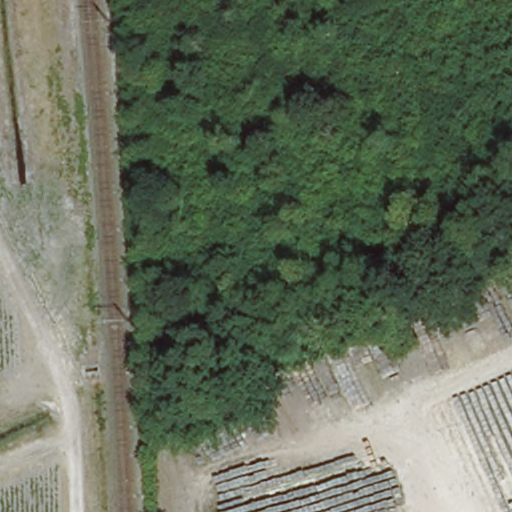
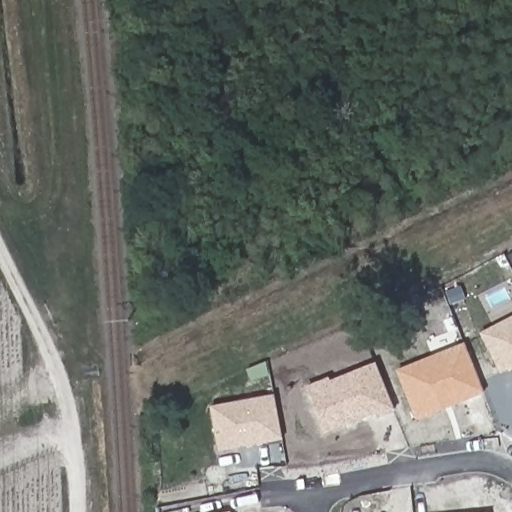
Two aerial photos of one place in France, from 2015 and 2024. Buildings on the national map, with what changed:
new [(501,375),(482,338),(486,336),(483,331),(512,317),(512,373),(510,370),(501,375)]
new [(463,344),(468,348),(483,392),(417,419),(396,371),(463,344)]
new [(395,412),(360,420),(325,434),(307,389),(374,361),(395,412)]
new [(230,450),(220,449),(210,407),(273,397),(284,440),(230,450)]
new [(230,512),(227,512),(230,511),(230,512)]

